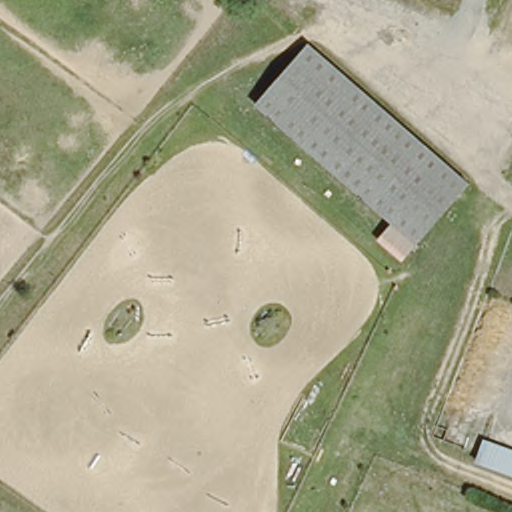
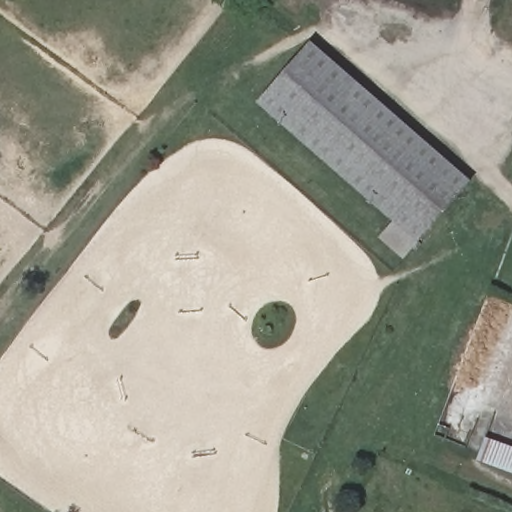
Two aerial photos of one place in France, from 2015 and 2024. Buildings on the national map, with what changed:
unchanged [(424,236),(265,95),(316,38),(475,179),(424,236)]
unchanged [(512,442),(512,470),(480,457),(487,433),(512,442)]

